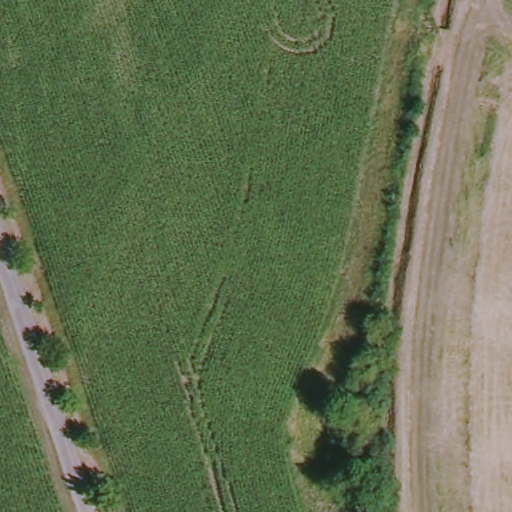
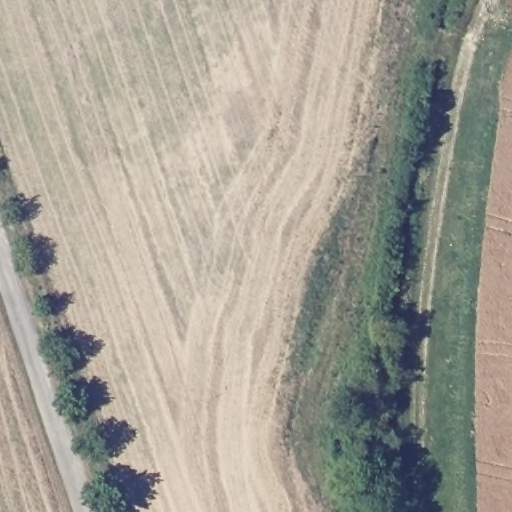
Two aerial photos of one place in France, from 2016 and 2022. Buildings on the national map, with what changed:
[]

